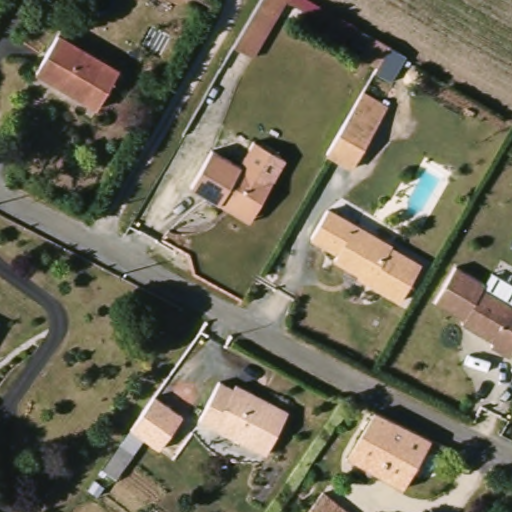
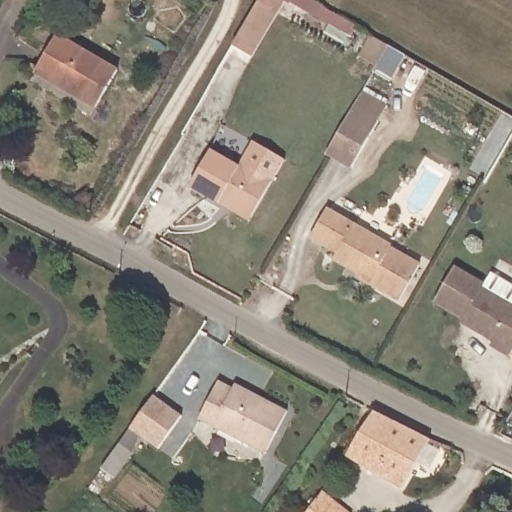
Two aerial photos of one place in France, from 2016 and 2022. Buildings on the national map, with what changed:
unchanged [(254,54),(234,43),(259,0),(285,0),(254,54)]
unchanged [(35,72),(57,35),(118,71),(96,107),(35,72)]
unchanged [(391,47),(411,59),(396,84),(375,72),(391,47)]
unchanged [(327,152),(351,111),(354,106),(379,120),(376,126),(352,167),(327,152)]
unchanged [(185,187),(207,150),(234,165),(237,162),(268,180),(246,217),(244,221),(214,204),(185,187)]
unchanged [(368,282),(369,278),(334,257),(338,252),(310,237),(327,209),(391,246),(389,247),(420,265),(400,300),(368,282)]
unchanged [(459,317),(430,301),(451,265),(481,282),(478,287),(509,305),(512,300),(512,344),(505,356),(486,345),(489,340),(466,327),(457,322),(459,317)]
unchanged [(260,454),(194,419),(214,381),(228,388),(230,384),(283,412),(260,454)]
unchanged [(431,440),(403,488),(347,455),(374,411),(431,440)]
unchanged [(357,511),(356,512),(308,512),(327,487),(357,511)]

